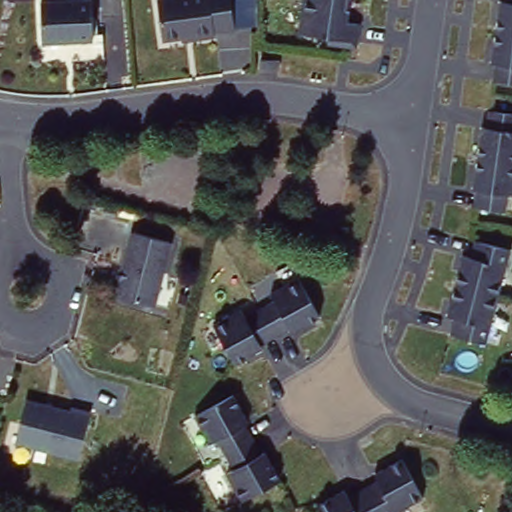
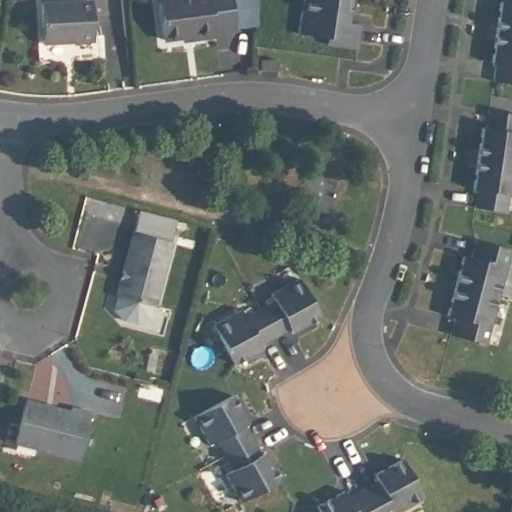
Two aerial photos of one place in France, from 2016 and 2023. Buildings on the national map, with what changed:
unchanged [(92,19),(101,19),(102,41),(36,45),(35,27),(41,27),(39,0),(91,0),(92,19)]
unchanged [(181,36),(162,39),(156,0),(231,0),(234,28),(214,31),(215,36),(194,39),(182,40),(181,36)]
unchanged [(360,25),(356,51),(327,47),(327,40),(296,35),(302,0),(350,0),(348,16),(347,23),(360,25)]
unchanged [(496,14),(498,7),(499,0),(512,0),(512,81),(491,78),(494,63),(490,62),(492,51),(492,45),(496,14)]
unchanged [(274,61),(273,73),(254,73),(253,61),(274,61)]
unchanged [(479,145),(479,144),(480,137),(482,128),(485,129),(487,111),(512,115),(512,195),(508,195),(504,214),(473,209),(476,191),(473,190),(474,181),(474,176),(479,145)]
unchanged [(169,238),(152,302),(112,293),(129,228),(169,238)]
unchanged [(456,272),(457,266),(460,258),(467,260),(471,243),(507,253),(482,346),(447,337),(451,321),(444,319),(446,310),(448,304),(456,272)]
unchanged [(234,367),(212,329),(241,313),(245,320),(274,303),(270,296),(298,281),(321,320),(308,327),(302,330),(293,335),(290,331),(261,348),(263,351),(253,357),(247,360),(234,367)]
unchanged [(281,485),(242,506),(226,478),(234,474),(217,445),(210,448),(194,420),(233,398),(240,412),(243,416),(249,426),(245,428),(262,458),(265,456),(270,465),(273,471),(281,485)]
unchanged [(69,410),(88,414),(77,460),(12,443),(23,401),(69,410)]
unchanged [(404,512),(319,512),(317,509),(330,502),(337,498),(344,494),(349,500),(379,484),(375,478),(383,473),(389,470),(402,462),(424,501),(404,512)]

